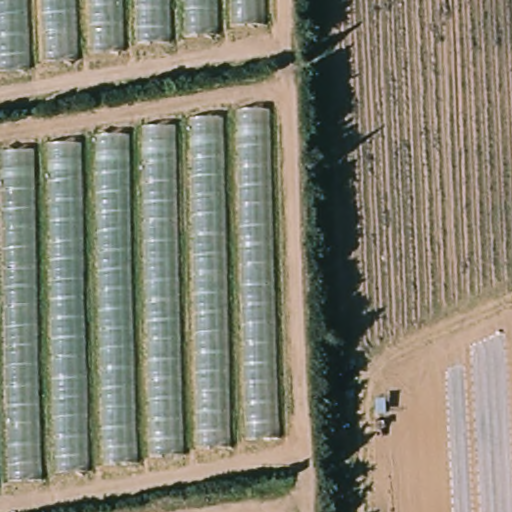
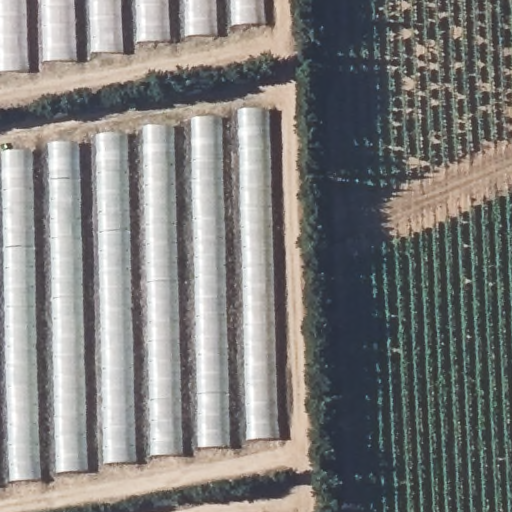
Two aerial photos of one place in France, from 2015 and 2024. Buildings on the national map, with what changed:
unchanged [(0,0),(265,0),(267,24),(0,72),(0,0)]
unchanged [(0,154),(270,108),(283,435),(0,486),(0,154)]

